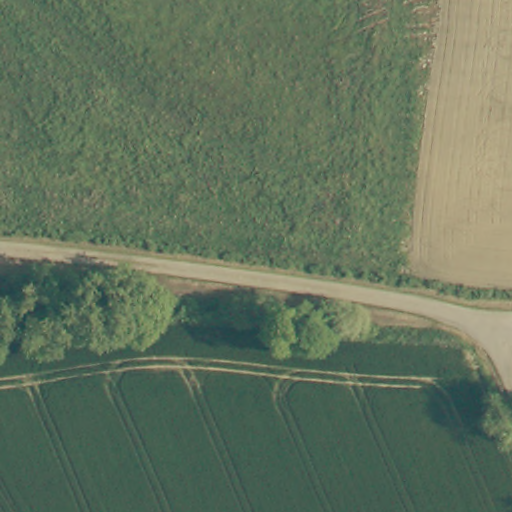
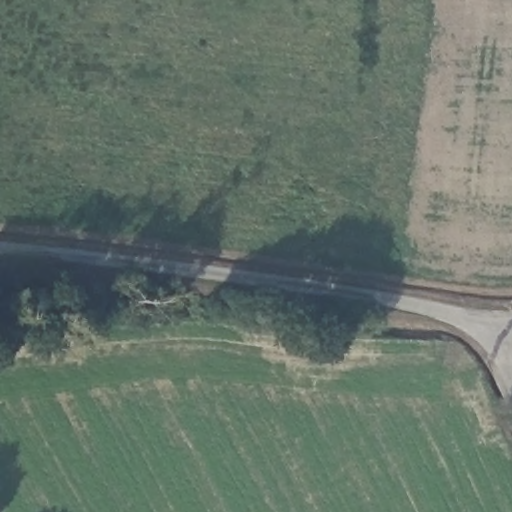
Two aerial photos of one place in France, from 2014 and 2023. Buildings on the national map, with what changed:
[]

